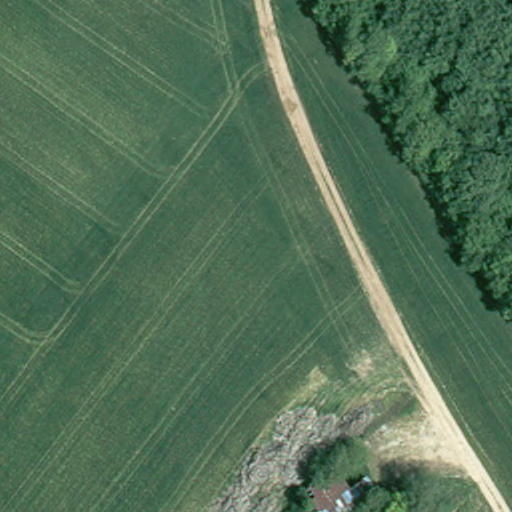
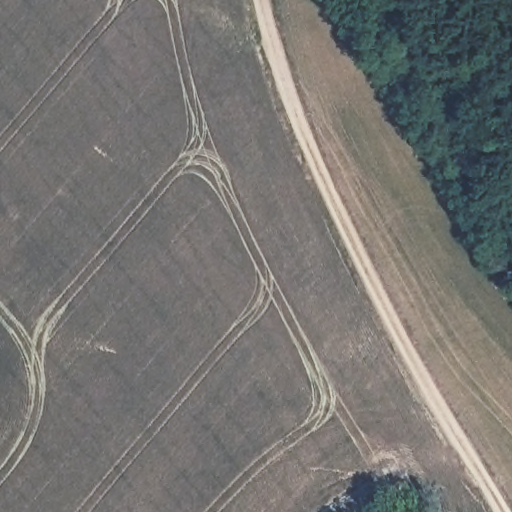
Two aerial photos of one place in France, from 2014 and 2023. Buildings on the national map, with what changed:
unchanged [(379,512),(318,512),(302,486),(357,455),(393,502),(379,512)]

